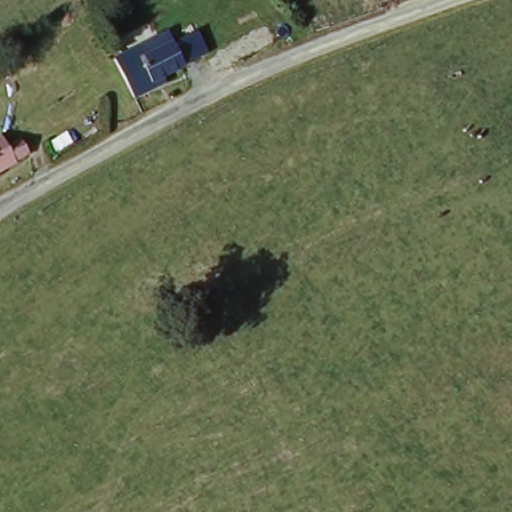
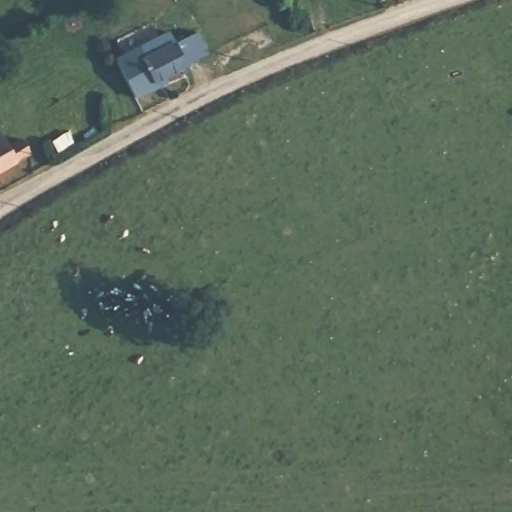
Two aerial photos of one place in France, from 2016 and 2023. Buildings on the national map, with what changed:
unchanged [(150,84),(130,92),(113,54),(151,36),(156,46),(168,41),(191,30),(202,53),(178,64),(146,78),(150,84)]
unchanged [(0,163),(0,142),(16,134),(24,149),(0,163)]

